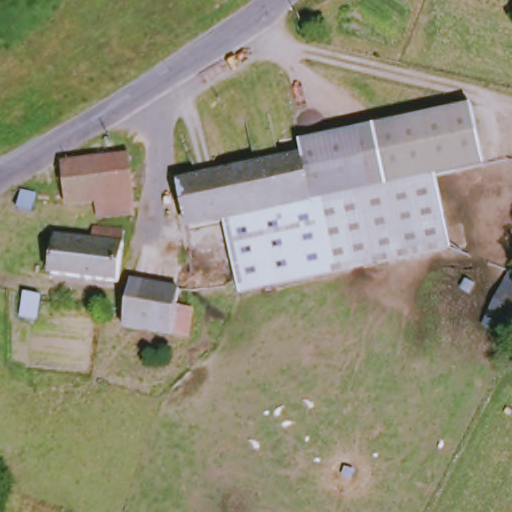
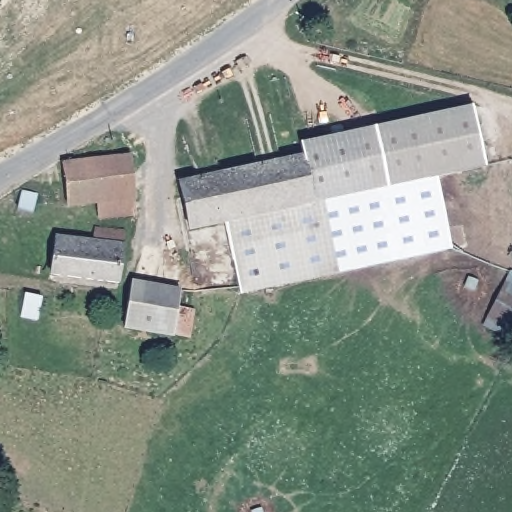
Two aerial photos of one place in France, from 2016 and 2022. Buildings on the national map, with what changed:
unchanged [(222,223),(185,230),(176,180),(297,156),(295,141),(468,105),(483,164),(433,176),(450,247),(237,293),(222,223)]
unchanged [(89,222),(87,205),(63,207),(61,171),(120,165),(120,172),(119,202),(115,202),(115,220),(89,222)]
unchanged [(120,231),(115,278),(55,274),(58,236),(92,240),(94,229),(120,231)]
unchanged [(476,323),(501,270),(512,274),(512,329),(510,333),(476,323)]
unchanged [(192,332),(171,329),(123,318),(124,301),(131,277),(177,286),(175,306),(195,308),(192,332)]
unchanged [(42,288),(41,313),(26,312),(25,287),(42,288)]

